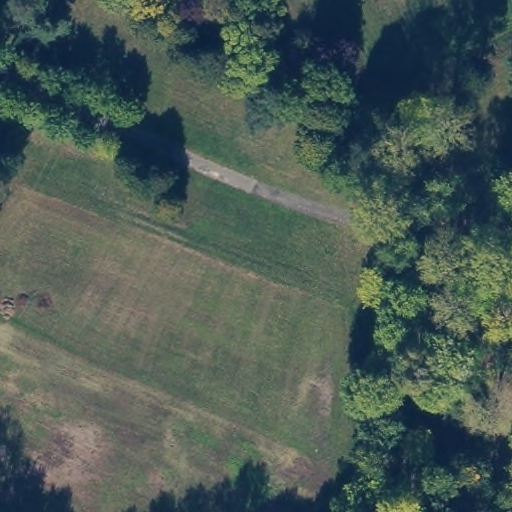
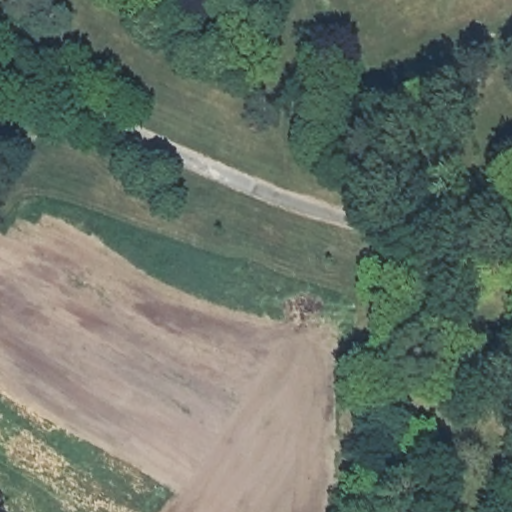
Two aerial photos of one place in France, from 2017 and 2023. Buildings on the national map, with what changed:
[]

